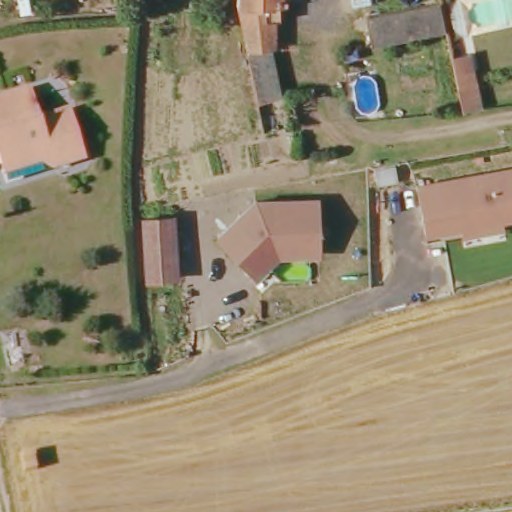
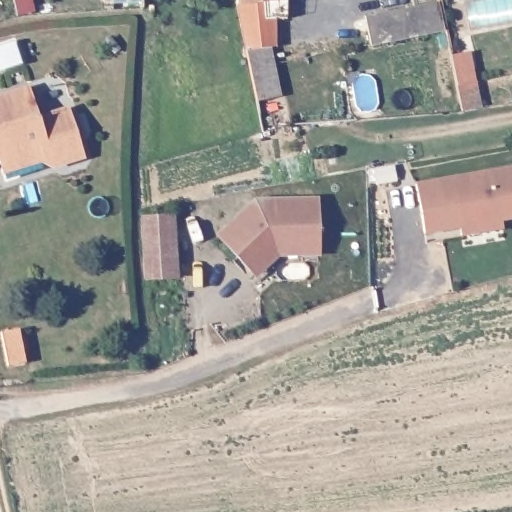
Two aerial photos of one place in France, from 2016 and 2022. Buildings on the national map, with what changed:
unchanged [(272,44),(262,44),(242,46),(237,21),(233,0),(273,0),(272,44)]
unchanged [(363,13),(371,12),(378,10),(438,1),(445,30),(381,40),(375,40),(369,41),(363,13)]
unchanged [(269,96),(246,99),(242,46),(262,44),(269,96)]
unchanged [(461,110),(453,73),(450,58),(467,55),(470,70),(477,108),(461,110)]
unchanged [(0,96),(31,87),(40,119),(71,111),(84,160),(51,168),(40,161),(1,172),(0,170),(0,96)]
unchanged [(385,170),(387,179),(373,181),(371,172),(385,170)]
unchanged [(457,237),(456,229),(420,235),(411,187),(512,170),(512,219),(495,222),(496,230),(457,237)]
unchanged [(214,237),(252,202),(312,202),(312,245),(312,254),(272,255),(250,275),(244,268),(214,237)]
unchanged [(179,277),(148,279),(144,220),(176,217),(179,277)]

